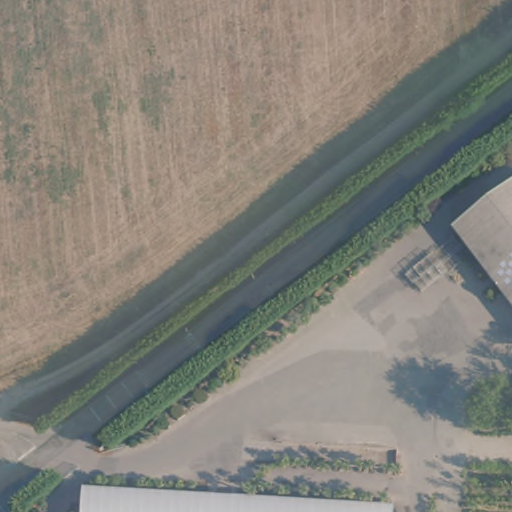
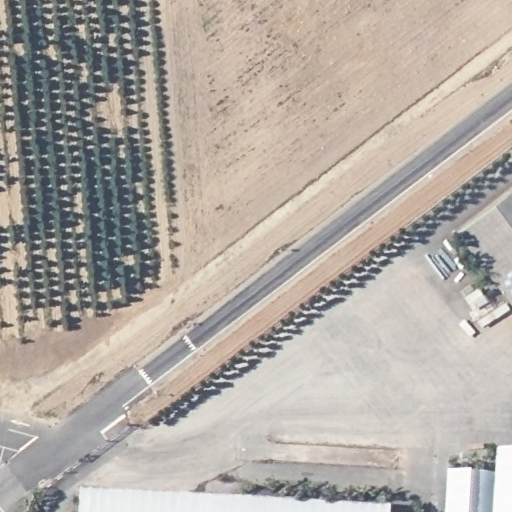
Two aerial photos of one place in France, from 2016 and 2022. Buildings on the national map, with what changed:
unchanged [(512,186),(512,305),(455,231),(512,186)]
new [(448,473),(497,477),(498,451),(512,452),(512,512),(446,512),(448,473)]
unchanged [(82,490),(393,509),(392,512),(81,512),(82,490)]

